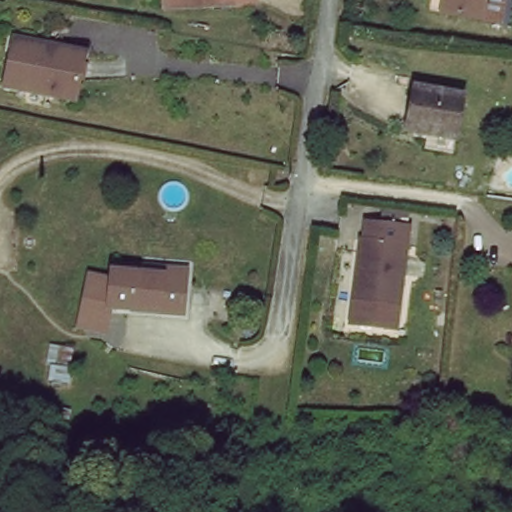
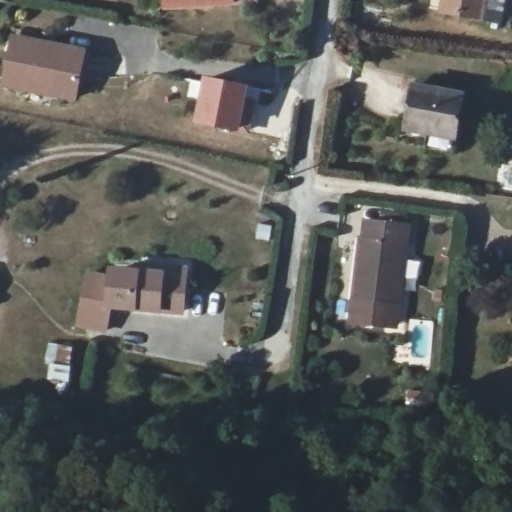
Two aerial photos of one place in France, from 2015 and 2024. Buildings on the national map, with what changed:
unchanged [(167,10),(167,0),(236,0),(237,6),(167,10)]
unchanged [(489,0),(487,14),(451,9),(444,8),(445,0),(489,0)]
unchanged [(75,95),(10,82),(17,48),(20,36),(57,44),(85,49),(75,95)]
new [(188,78),(202,81),(203,75),(250,84),(240,132),(193,122),(198,99),(185,96),(188,78)]
unchanged [(419,86),(467,92),(461,133),(434,128),(433,135),(412,131),(419,86)]
unchanged [(400,327),(350,323),(366,215),(413,221),(400,327)]
unchanged [(147,307),(112,305),(110,313),(112,314),(108,336),(85,332),(94,273),(115,277),(117,268),(141,272),(142,262),(192,270),(190,279),(182,316),(147,307)]
unchanged [(60,353),(75,354),(73,372),(58,369),(60,353)]

